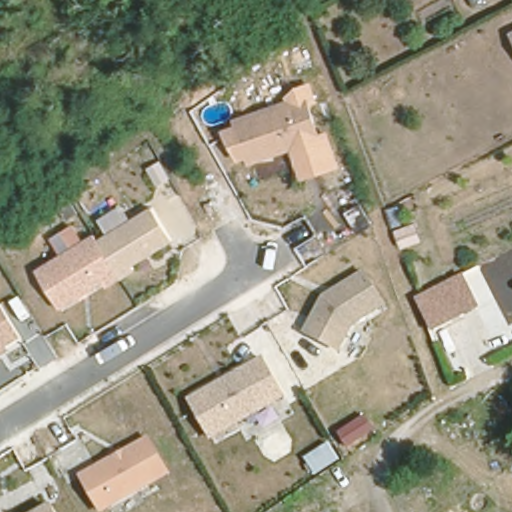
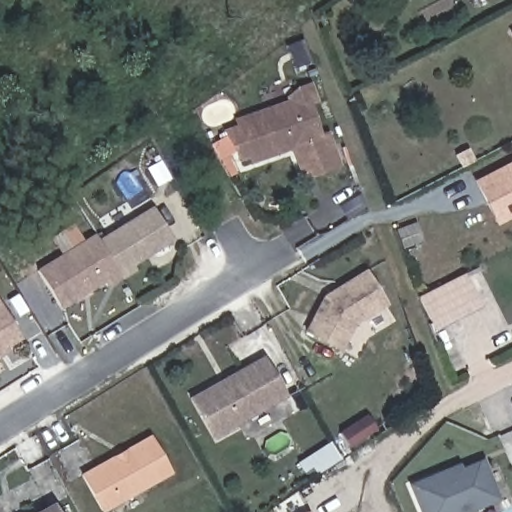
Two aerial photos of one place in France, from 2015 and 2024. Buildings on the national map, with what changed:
unchanged [(512,31),(512,35),(511,32),(512,31)]
unchanged [(303,94),(321,140),(306,145),(304,140),(251,159),(236,119),(303,94)]
new [(304,140),(306,145),(321,140),(318,134),(327,130),(338,166),(299,181),(287,146),(304,140)]
new [(472,181),(512,160),(512,218),(495,226),(472,181)]
unchanged [(97,238),(153,205),(174,239),(135,263),(138,270),(109,287),(105,280),(60,310),(34,267),(93,232),(97,238)]
unchanged [(322,293),(362,266),(383,299),(351,320),(337,345),(304,328),(322,293)]
unchanged [(468,308),(441,323),(426,293),(453,278),(468,308)]
unchanged [(1,304),(21,337),(7,346),(11,350),(0,357),(0,304),(1,304)]
unchanged [(264,352),(287,396),(212,440),(187,397),(264,352)]
unchanged [(349,448),(337,429),(367,411),(378,430),(349,448)]
unchanged [(149,432),(169,466),(102,505),(82,471),(149,432)]
unchanged [(316,475),(304,456),(330,440),(342,459),(316,475)]
new [(460,467),(482,458),(500,500),(471,512),(418,512),(407,484),(457,462),(460,467)]
unchanged [(51,512),(39,512),(48,506),(51,512)]

